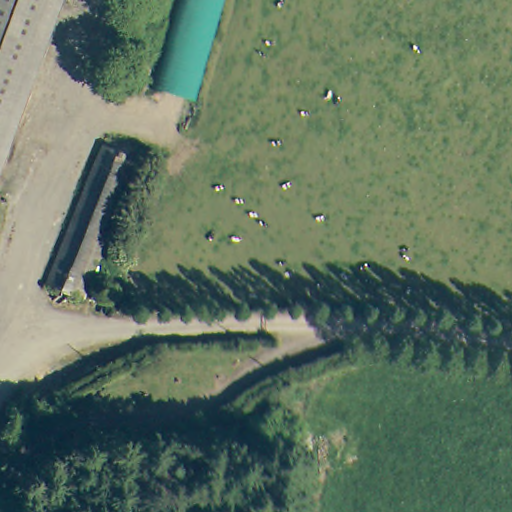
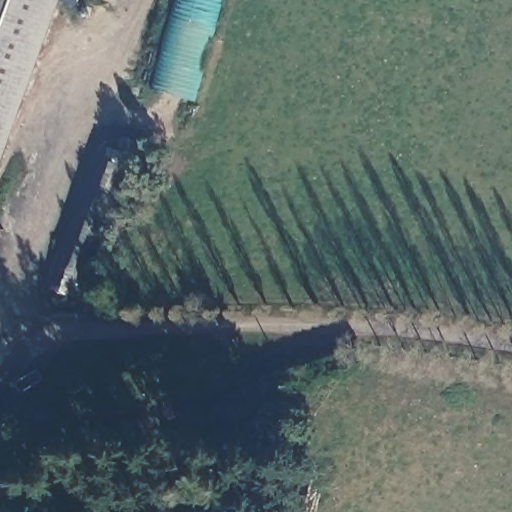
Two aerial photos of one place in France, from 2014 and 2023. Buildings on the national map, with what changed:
unchanged [(0,0),(40,0),(0,130),(0,0)]
unchanged [(154,90),(180,0),(223,0),(195,100),(154,90)]
unchanged [(61,295),(56,293),(93,145),(131,155),(95,302),(61,295)]

